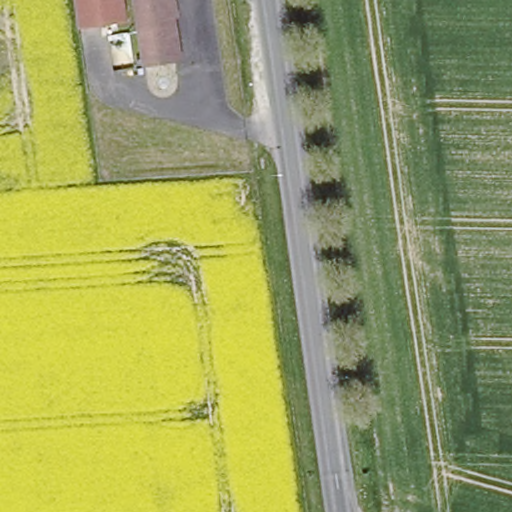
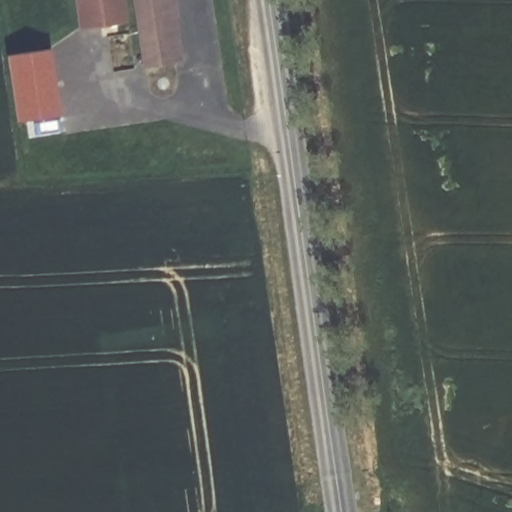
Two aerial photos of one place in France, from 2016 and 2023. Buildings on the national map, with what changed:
unchanged [(128,21),(78,29),(74,0),(124,0),(128,21)]
unchanged [(180,60),(148,65),(138,0),(179,0),(181,15),(179,16),(186,59),(180,60)]
demolished [(111,34),(132,30),(138,66),(117,70),(111,34)]
new [(7,55),(51,48),(61,114),(16,120),(7,55)]

